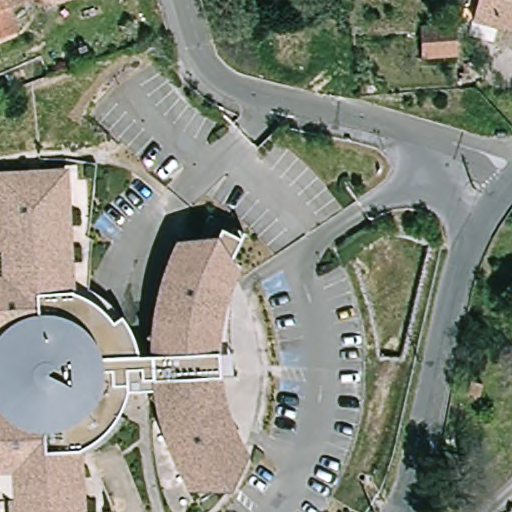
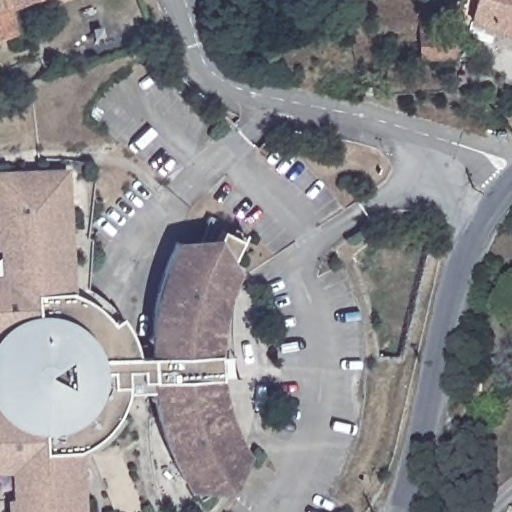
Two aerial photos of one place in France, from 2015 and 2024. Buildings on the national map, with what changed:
unchanged [(0,0),(21,0),(6,5),(16,31),(0,37),(0,0)]
unchanged [(469,18),(474,0),(512,0),(512,30),(469,18)]
unchanged [(451,28),(451,56),(424,56),(423,28),(451,28)]
unchanged [(0,478),(0,280),(6,279),(5,252),(2,240),(3,252),(0,252),(0,176),(30,174),(70,172),(71,183),(71,192),(72,214),(73,229),(74,251),(75,266),(76,287),(77,296),(86,300),(97,306),(104,312),(111,319),(115,324),(117,326),(124,319),(131,329),(136,340),(140,352),(142,359),(155,359),(154,352),(155,346),(149,341),(156,333),(157,322),(160,305),(164,287),(170,270),(176,253),(180,245),(220,241),(225,250),(232,236),(245,242),(235,264),(241,275),(234,292),(229,308),(225,324),(222,343),(222,356),(223,382),(224,385),(225,394),(228,405),(231,416),(236,431),(243,446),(251,458),(233,494),(193,493),(182,474),(176,460),(169,442),(162,422),(160,408),(159,404),(158,395),(131,396),(126,410),(118,424),(110,434),(98,445),(86,453),(82,455),(83,472),(86,472),(86,481),(87,503),(88,512),(13,512),(12,503),(16,503),(23,503),(17,503),(16,477),(0,478)]
unchanged [(152,402),(157,395),(158,395),(159,404),(160,408),(152,402)]

